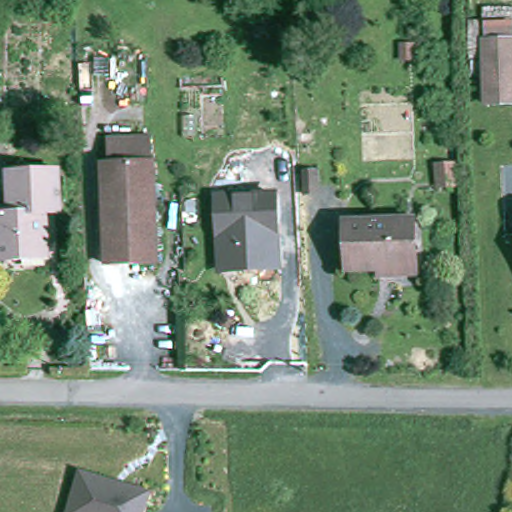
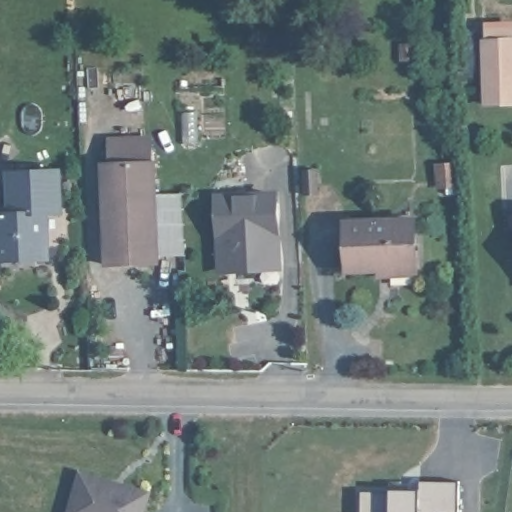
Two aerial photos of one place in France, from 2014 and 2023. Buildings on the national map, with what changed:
unchanged [(512,103),(483,104),(482,22),(512,22),(512,103)]
demolished [(3,37),(0,95),(0,37),(3,37)]
unchanged [(162,259),(112,261),(108,161),(113,160),(112,136),(150,135),(150,159),(158,159),(162,259)]
unchanged [(0,262),(0,215),(6,215),(4,174),(54,172),(55,205),(56,214),(42,215),(43,260),(0,262)]
unchanged [(260,270),(237,271),(221,271),(220,237),(217,198),(275,196),(278,262),(278,269),(260,270)]
unchanged [(380,271),(347,272),(345,224),(415,221),(417,269),(417,275),(380,276),(380,271)]
unchanged [(153,491),(148,512),(67,512),(78,470),(153,491)]
new [(390,492),(390,489),(415,490),(420,481),(458,482),(458,512),(360,512),(360,492),(390,492)]

